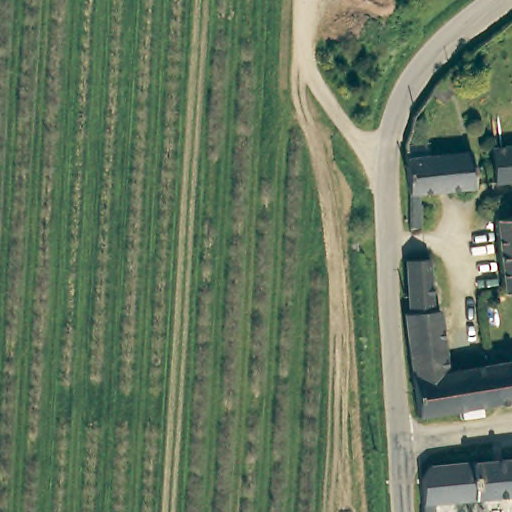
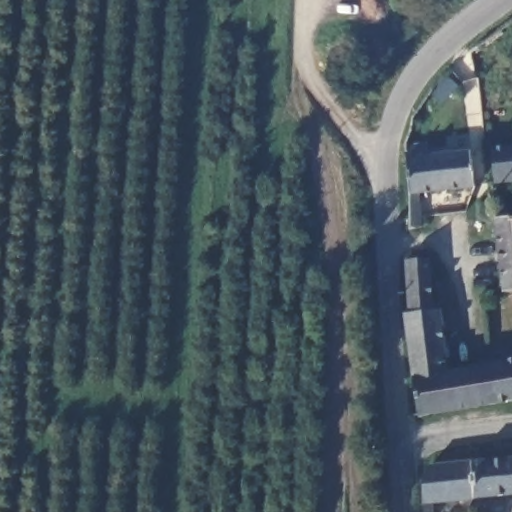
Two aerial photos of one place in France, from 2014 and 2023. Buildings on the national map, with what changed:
unchanged [(491,182),(489,149),(512,147),(512,181),(491,182)]
unchanged [(409,177),(408,159),(409,154),(438,151),(440,163),(480,160),(483,194),(428,200),(428,237),(413,238),(413,202),(409,177)]
unchanged [(508,295),(503,219),(512,218),(512,295),(508,295)]
unchanged [(422,419),(408,321),(406,311),(411,308),(412,275),(413,263),(437,261),(440,313),(449,312),(452,374),(512,365),(512,404),(422,419)]
unchanged [(427,502),(425,481),(434,462),(512,454),(512,494),(427,502)]

